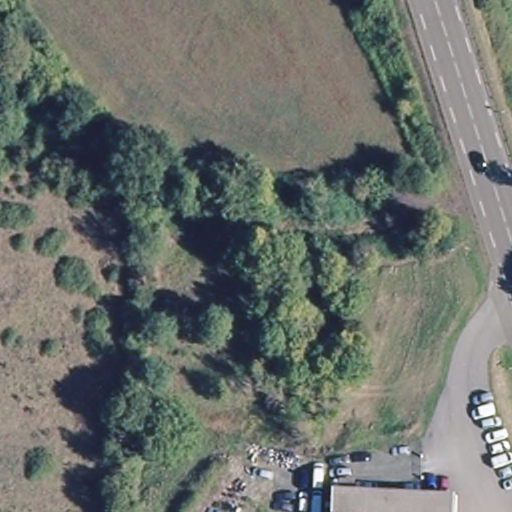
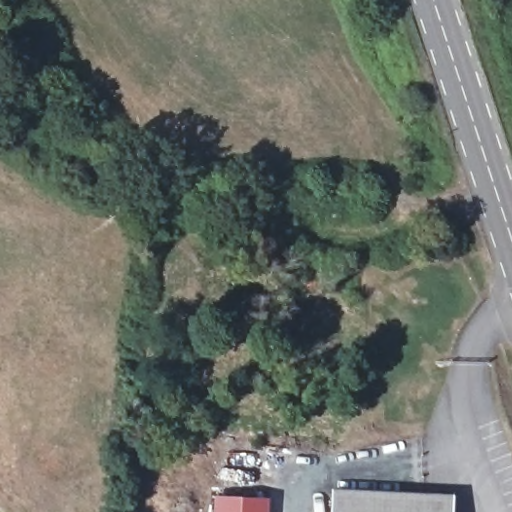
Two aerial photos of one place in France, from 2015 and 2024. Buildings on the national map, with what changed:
unchanged [(452,495),(452,512),(329,512),(329,490),(452,495)]
new [(269,499),(268,512),(214,512),(214,495),(269,499)]

